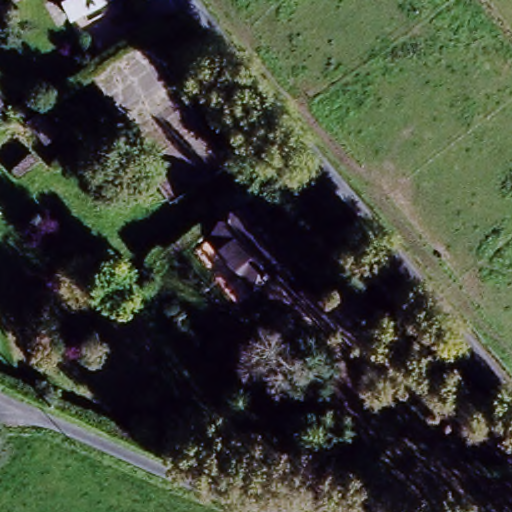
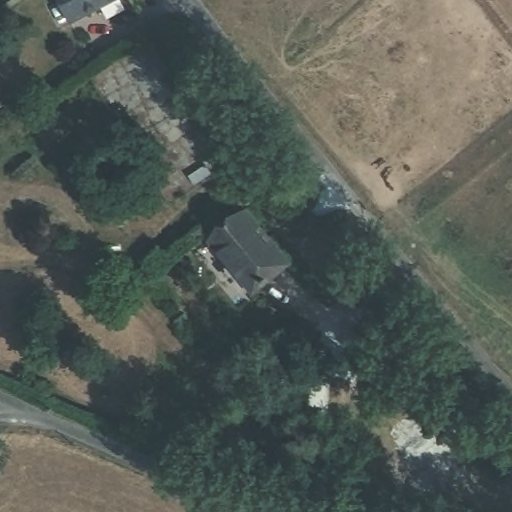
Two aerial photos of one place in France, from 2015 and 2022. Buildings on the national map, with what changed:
unchanged [(56,0),(115,0),(74,26),(56,0)]
unchanged [(289,277),(257,303),(204,239),(236,212),(289,277)]
unchanged [(412,318),(401,327),(372,292),(383,283),(412,318)]

